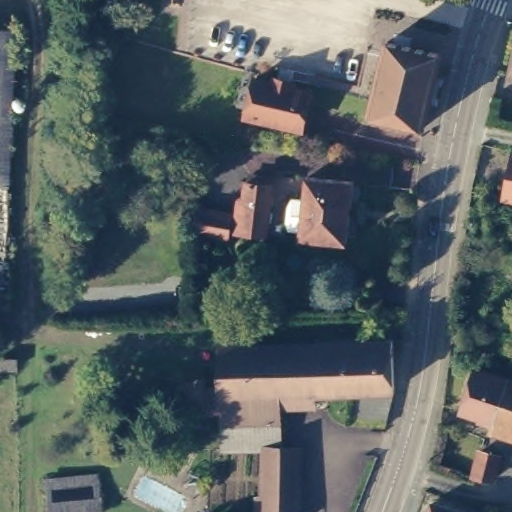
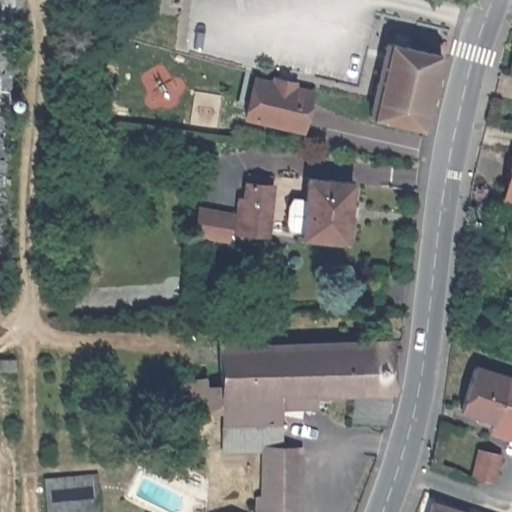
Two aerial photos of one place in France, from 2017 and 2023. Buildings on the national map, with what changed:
unchanged [(373,114),(386,54),(389,39),(443,53),(426,126),(373,114)]
unchanged [(7,48),(0,178),(0,48),(7,48)]
unchanged [(512,56),(512,80),(508,79),(512,56)]
unchanged [(252,71),(318,85),(306,134),(242,116),(252,71)]
unchanged [(512,171),(512,191),(509,190),(512,171)]
unchanged [(303,235),(311,177),(355,182),(348,241),(303,235)]
unchanged [(239,228),(244,194),(249,194),(253,180),(274,183),(267,232),(239,228)]
unchanged [(302,241),(300,254),(299,254),(264,251),(264,250),(266,235),(267,232),(303,235),(302,241)]
unchanged [(271,494),(274,446),(228,449),(228,433),(224,349),(223,337),(232,328),(259,327),(260,347),(273,345),(274,342),(317,338),(318,342),(340,340),(340,334),(349,333),(350,339),(395,337),(399,385),(390,424),(356,421),(359,389),(286,395),(286,429),(287,444),(304,448),(301,495),(271,494)]
unchanged [(473,415),(464,413),(466,407),(441,398),(455,357),(512,375),(512,422),(475,409),(473,415)]
unchanged [(16,359),(16,373),(0,372),(0,359),(16,359)]
unchanged [(211,378),(211,414),(207,414),(208,429),(193,429),(193,415),(182,414),(181,381),(211,378)]
unchanged [(503,461),(497,482),(479,477),(486,456),(503,461)]
unchanged [(99,473),(100,509),(48,512),(46,477),(99,473)]
unchanged [(206,502),(185,492),(191,479),(213,489),(206,502)]
unchanged [(301,495),(300,512),(262,512),(262,506),(262,494),(271,494),(301,495)]
unchanged [(471,512),(414,512),(417,498),(471,512)]

